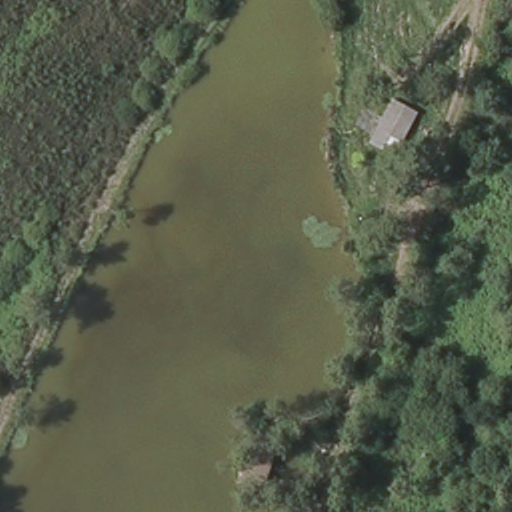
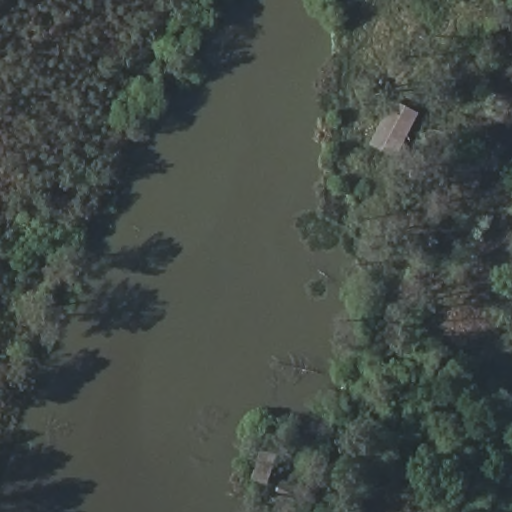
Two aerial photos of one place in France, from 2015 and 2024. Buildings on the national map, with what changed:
unchanged [(368,149),(390,96),(420,113),(398,153),(368,149)]
unchanged [(265,490),(249,483),(260,448),(274,454),(265,490)]

